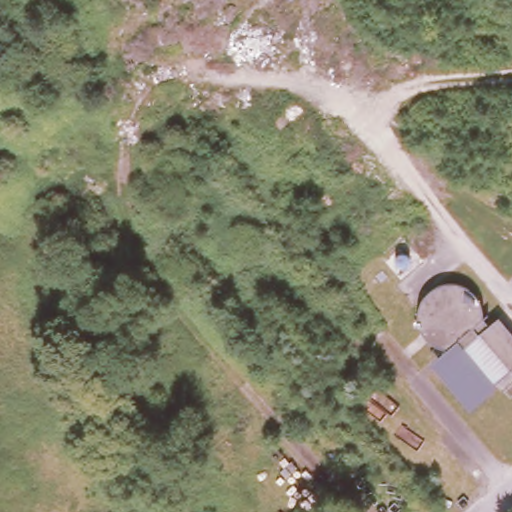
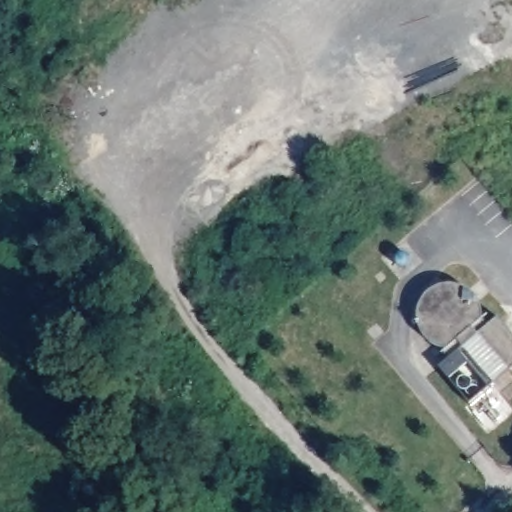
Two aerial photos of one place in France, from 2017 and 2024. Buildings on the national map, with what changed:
unchanged [(428,342),(421,333),(418,316),(419,302),(427,290),(441,286),(457,287),(469,292),(479,305),(480,322),(485,329),(496,319),(512,338),(512,362),(491,379),(497,387),(471,412),(425,366),(446,350),(428,342)]

